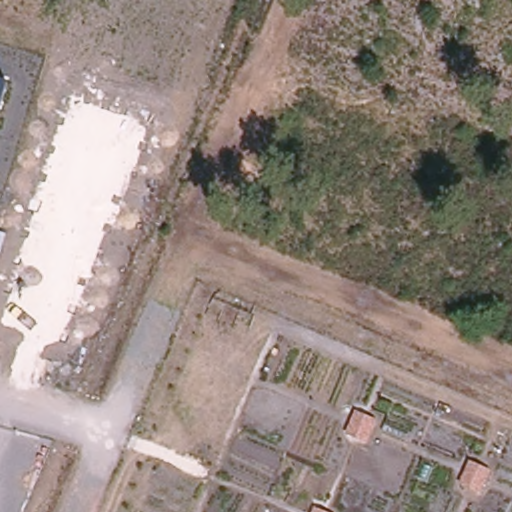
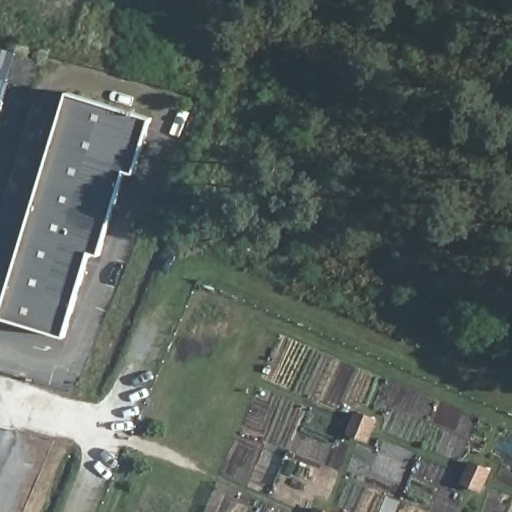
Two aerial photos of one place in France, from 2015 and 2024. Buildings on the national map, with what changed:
unchanged [(0,104),(0,78),(7,80),(0,104)]
new [(126,171),(100,255),(90,251),(64,337),(0,317),(0,315),(68,90),(151,116),(135,173),(126,171)]
unchanged [(376,417),(365,443),(341,435),(352,407),(376,417)]
unchanged [(491,468),(478,492),(456,484),(465,458),(491,468)]
unchanged [(308,512),(311,504),(329,512),(308,512)]

